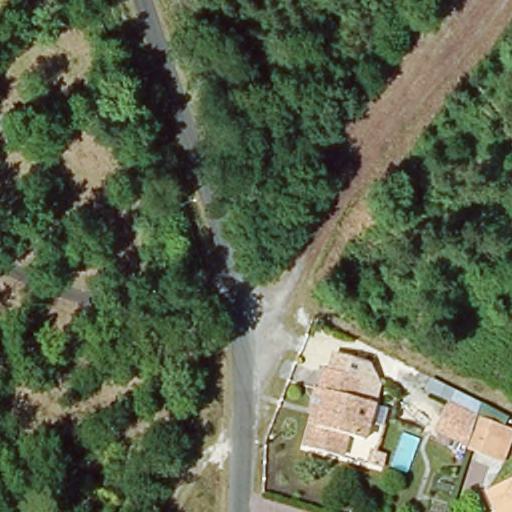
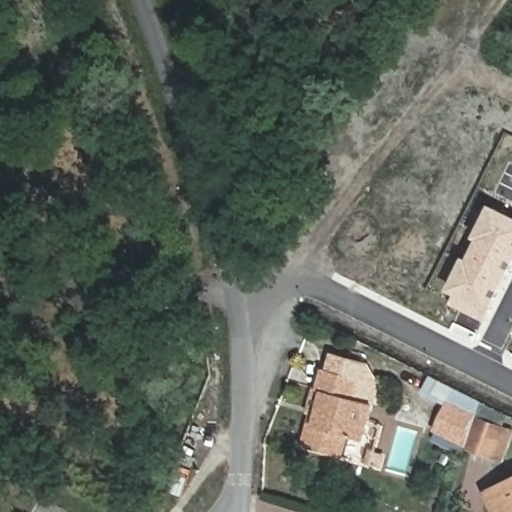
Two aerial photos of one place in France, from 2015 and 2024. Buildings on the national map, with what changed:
new [(489,205),(512,216),(512,267),(489,312),(483,321),(449,305),(455,294),(446,290),(463,255),(469,258),(478,240),(472,239),(489,205)]
unchanged [(350,437),(344,459),(308,449),(314,428),(322,396),(327,375),(363,385),(381,391),(375,411),(367,441),(350,437)]
unchanged [(437,432),(447,405),(428,397),(436,381),(484,408),(480,417),(512,429),(512,440),(501,463),(437,432)]
unchanged [(512,481),(512,512),(495,512),(486,493),(512,481)]

